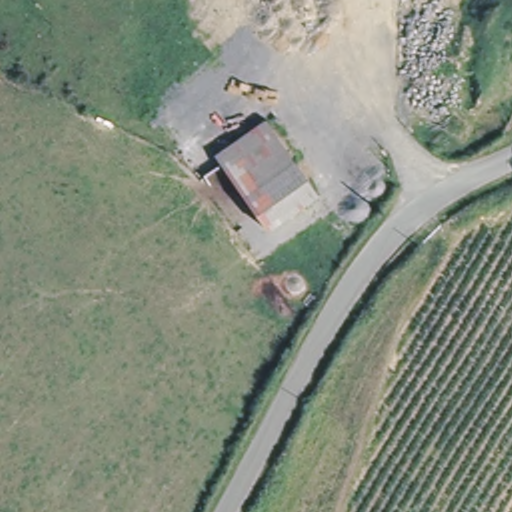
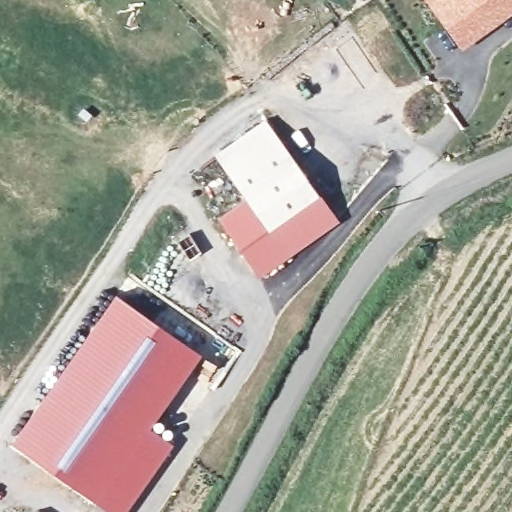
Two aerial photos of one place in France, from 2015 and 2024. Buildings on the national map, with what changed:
new [(424,0),(512,0),(512,14),(460,50),(424,0)]
unchanged [(294,161),(243,195),(216,154),(267,120),(294,161)]
unchanged [(294,161),(317,195),(267,230),(243,195),(294,161)]
new [(267,230),(317,195),(335,223),(258,275),(219,220),(246,199),(267,230)]
new [(199,356),(148,428),(173,447),(126,512),(109,512),(11,443),(114,295),(199,356)]

